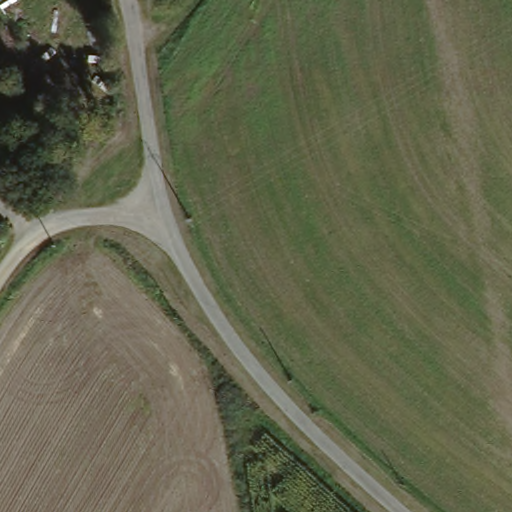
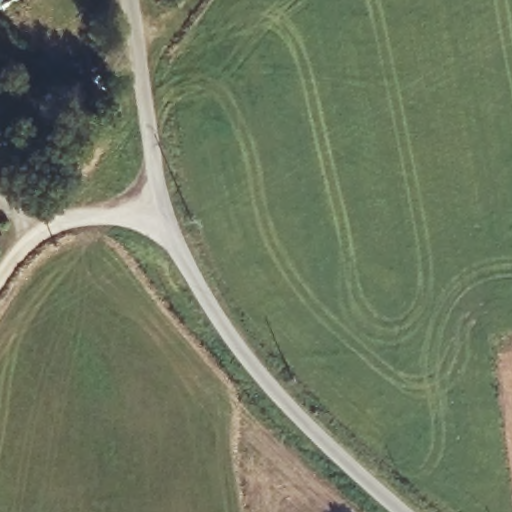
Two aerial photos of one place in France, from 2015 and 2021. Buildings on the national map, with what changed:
[]

